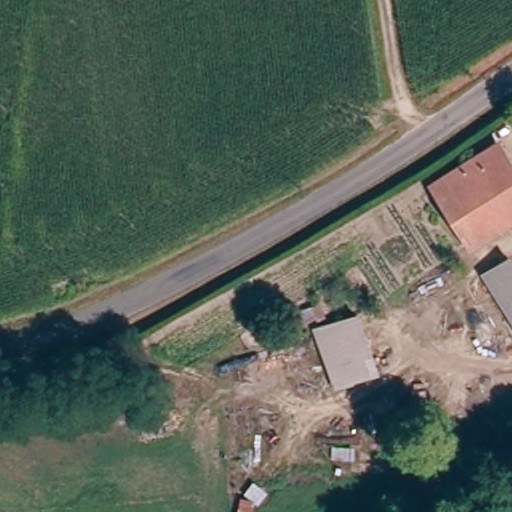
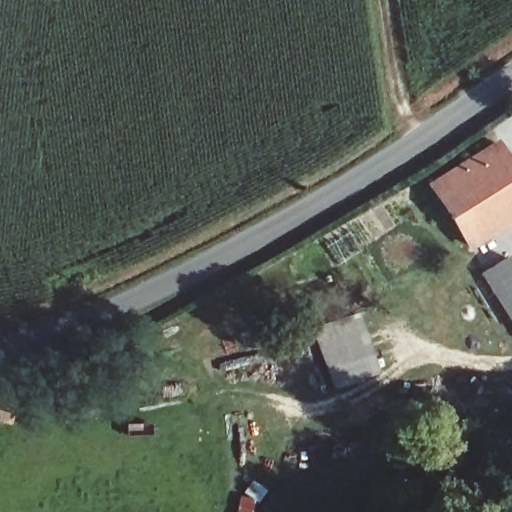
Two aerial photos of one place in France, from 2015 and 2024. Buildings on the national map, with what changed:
unchanged [(499,151),(512,173),(512,213),(465,244),(434,192),(499,151)]
unchanged [(507,264),(512,271),(512,324),(484,282),(494,273),(507,264)]
unchanged [(357,311),(373,358),(327,372),(312,329),(357,311)]

